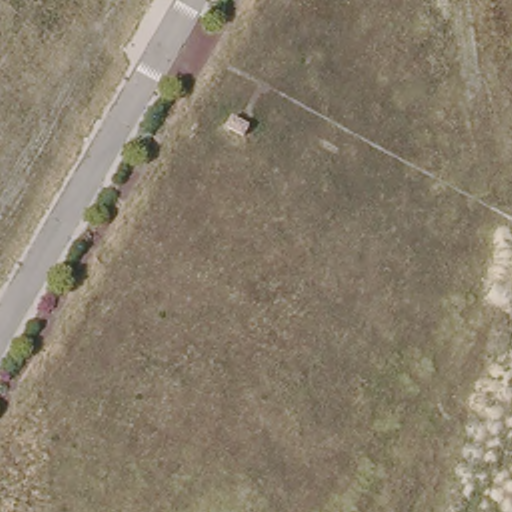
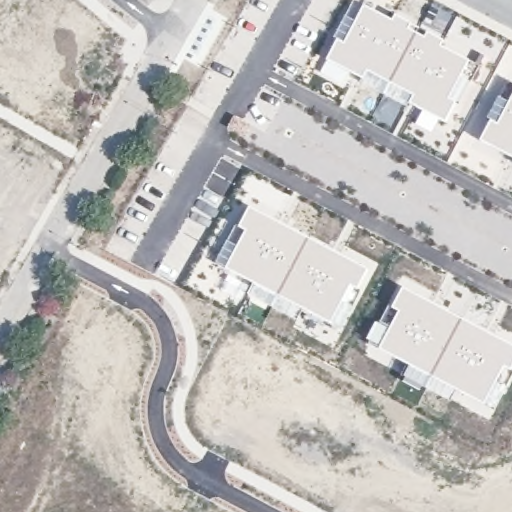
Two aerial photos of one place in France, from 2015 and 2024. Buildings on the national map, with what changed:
new [(365,5),(392,20),(395,15),(444,41),(441,47),(469,60),(480,65),(472,84),(460,104),(456,102),(446,122),(411,105),(409,107),(362,83),(364,80),(326,60),(337,40),(334,38),(345,17),(354,1),(365,5)]
new [(512,158),(479,141),(490,121),(487,119),(499,97),(501,98),(509,84),(512,84),(512,158)]
new [(367,270),(358,289),(361,291),(341,329),(330,324),(303,310),(297,320),(248,295),(253,285),(225,270),(215,265),(236,225),(239,226),(250,207),(367,270)]
new [(512,366),(510,369),(512,370),(512,377),(494,410),(484,405),(456,391),(450,402),(402,376),(409,366),(378,350),(379,346),(369,341),(389,305),(393,307),(403,288),(512,346),(512,366)]

